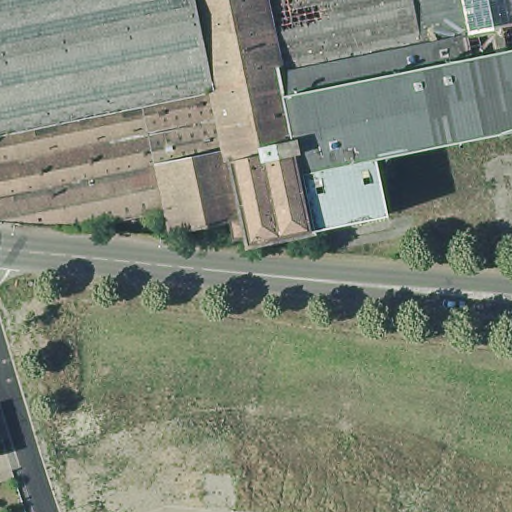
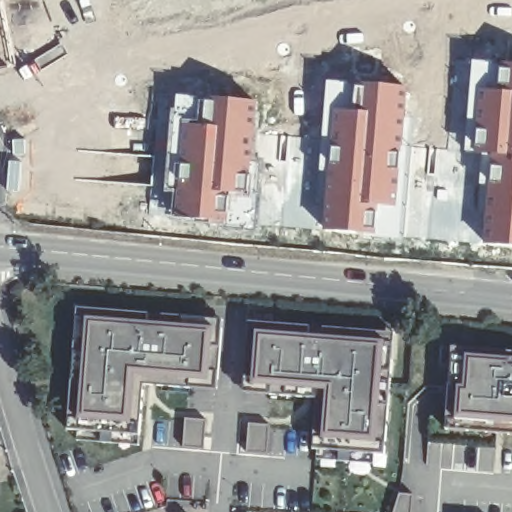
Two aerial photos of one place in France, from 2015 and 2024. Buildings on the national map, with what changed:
demolished [(127,13),(46,30),(0,39),(0,0),(185,0),(185,1),(127,13)]
demolished [(147,94),(147,96),(0,127),(0,39),(46,30),(127,13),(185,1),(185,0),(201,0),(217,79),(147,94)]
demolished [(386,46),(390,71),(290,93),(299,134),(235,149),(232,150),(217,79),(201,0),(418,0),(426,39),(386,46)]
demolished [(426,39),(418,0),(512,0),(512,21),(426,39)]
demolished [(390,71),(386,46),(426,39),(512,21),(512,46),(390,71)]
demolished [(379,156),(306,171),(301,148),(305,147),(302,133),(299,134),(290,93),(390,71),(512,46),(512,127),(379,156)]
new [(471,61),(499,64),(512,64),(512,248),(482,245),(487,178),(482,178),(482,156),(465,153),(467,116),(471,61)]
demolished [(235,149),(247,214),(236,216),(177,228),(175,229),(169,205),(85,223),(81,224),(29,220),(0,216),(0,127),(147,96),(147,94),(217,79),(232,150),(235,149)]
new [(326,189),(327,143),(322,142),(327,81),(408,87),(407,131),(399,211),(381,209),(379,229),(381,229),(381,236),(322,231),(326,189)]
new [(171,121),(176,96),(260,101),(257,144),(250,197),(231,196),(228,225),(172,218),(174,196),(164,195),(171,121)]
demolished [(299,136),(299,134),(302,133),(305,147),(301,148),(306,171),(318,226),(253,239),(252,231),(239,234),(236,216),(247,214),(235,149),(299,136)]
demolished [(390,212),(318,226),(306,171),(379,156),(390,212)]
demolished [(177,233),(86,225),(85,223),(169,205),(175,229),(177,228),(177,233)]
new [(217,392),(145,385),(140,436),(66,429),(76,307),(222,320),(217,392)]
new [(385,456),(311,450),(316,399),(242,393),(248,322),(396,333),(385,456)]
new [(512,352),(512,435),(445,429),(453,347),(512,352)]
new [(205,421),(202,450),(181,449),(184,418),(205,421)]
new [(267,426),(266,454),(245,454),(247,424),(267,426)]
unchanged [(0,440),(0,433),(2,440),(0,440)]
new [(396,494),(411,494),(409,512),(391,512),(396,494)]

